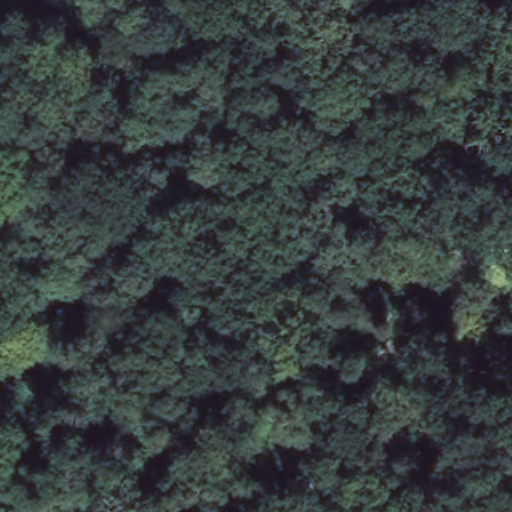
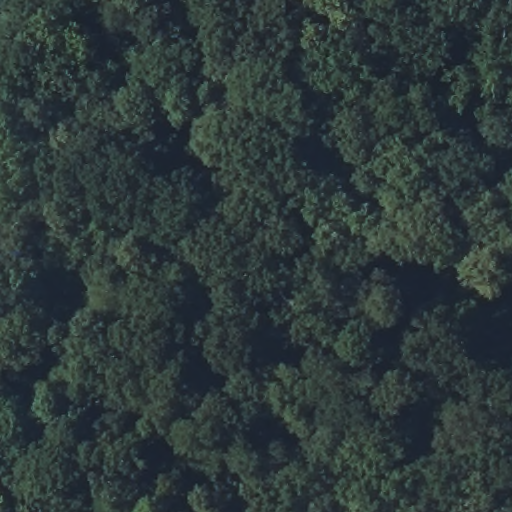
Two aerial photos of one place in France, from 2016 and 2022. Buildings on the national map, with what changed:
unchanged [(282,419),(293,403),(306,411),(293,427),(282,419)]

